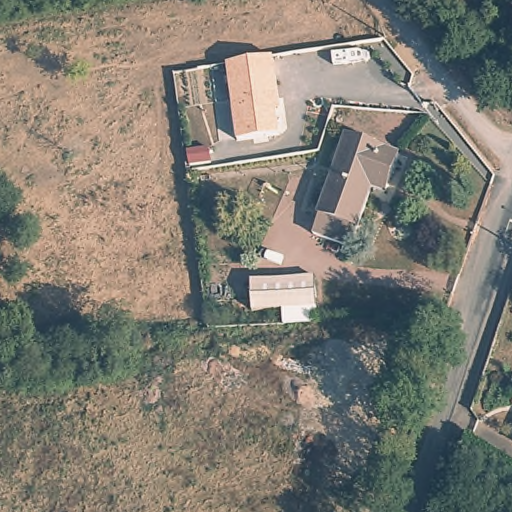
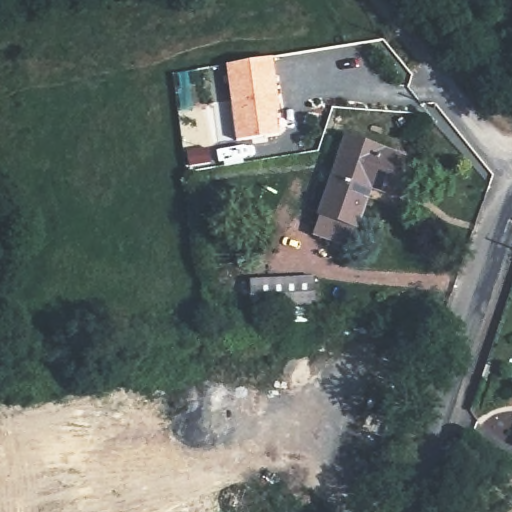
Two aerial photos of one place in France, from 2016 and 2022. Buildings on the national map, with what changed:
unchanged [(280,111),(277,111),(279,136),(237,140),(228,63),(274,57),(280,111)]
unchanged [(400,153),(386,192),(372,187),(359,227),(354,226),(346,247),(312,234),(348,135),(400,153)]
unchanged [(316,279),(317,312),(256,315),(254,283),(316,279)]

